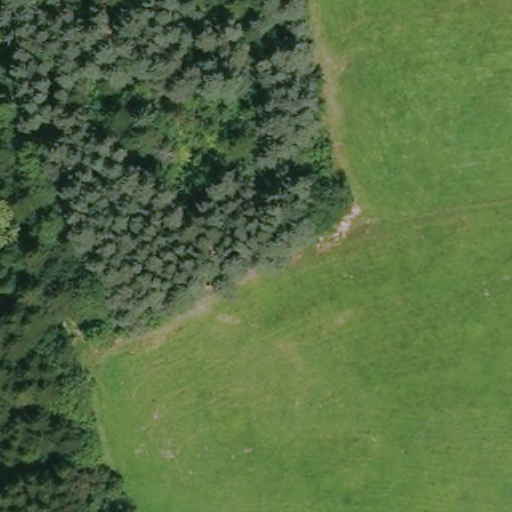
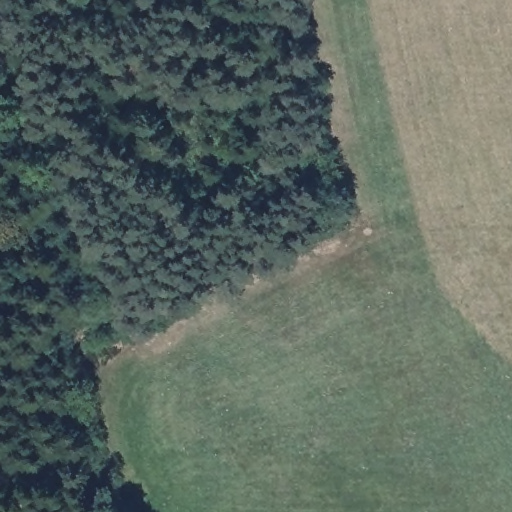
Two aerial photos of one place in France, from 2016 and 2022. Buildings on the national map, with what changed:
[]

